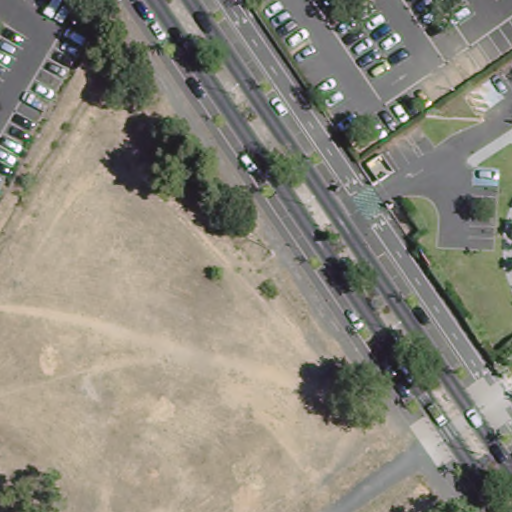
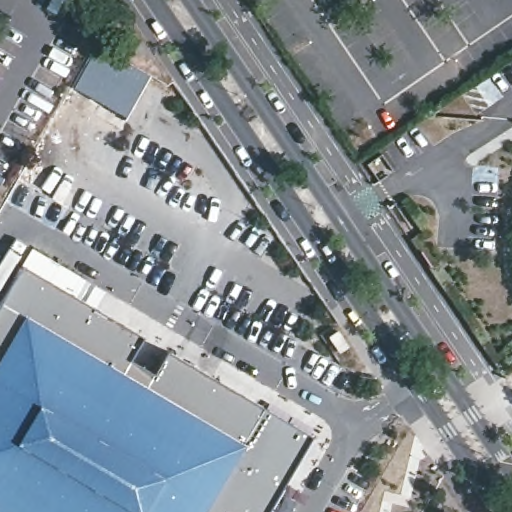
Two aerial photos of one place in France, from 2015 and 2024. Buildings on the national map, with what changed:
new [(73,88),(98,46),(150,76),(125,116),(73,88)]
new [(0,306),(23,267),(142,337),(128,361),(153,375),(166,352),(311,437),(266,512),(0,512),(0,306)]

